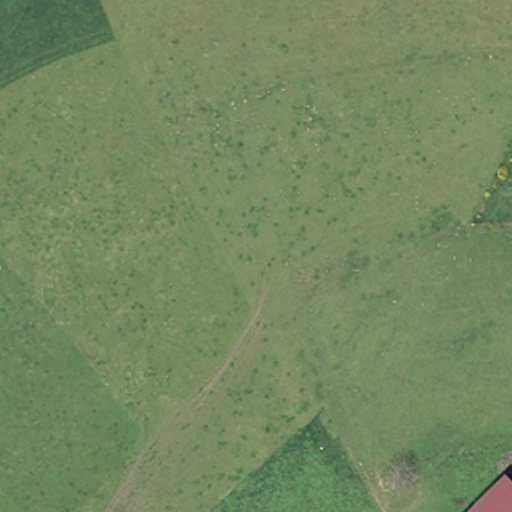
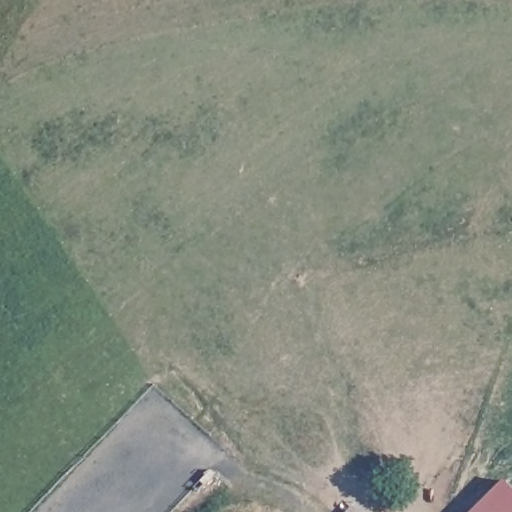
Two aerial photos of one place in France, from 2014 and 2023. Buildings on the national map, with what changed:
unchanged [(491,477),(512,496),(512,512),(457,512),(491,477)]

